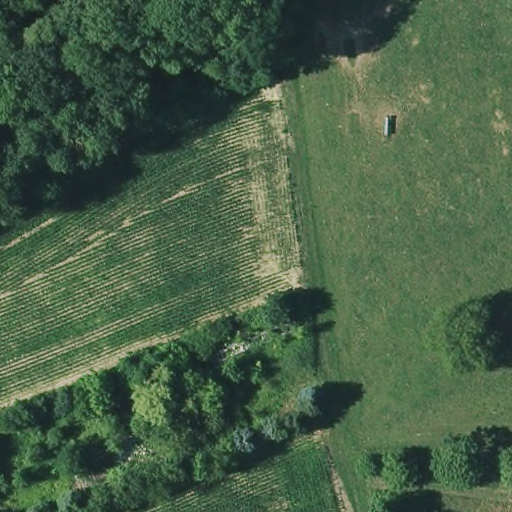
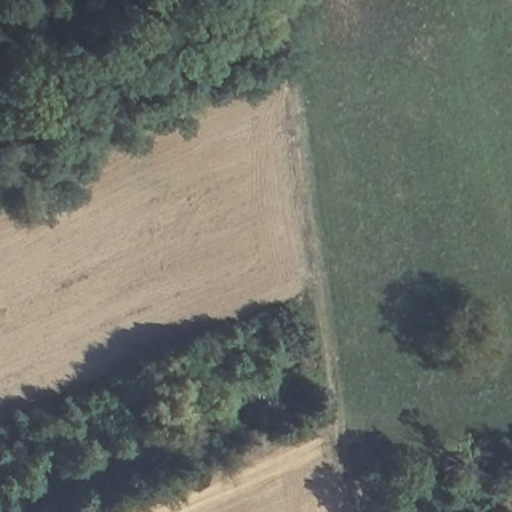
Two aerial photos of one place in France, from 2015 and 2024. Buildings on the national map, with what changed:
unchanged [(275,310),(289,341),(192,379),(180,350),(275,310)]
unchanged [(120,421),(107,383),(134,376),(146,412),(120,421)]
unchanged [(169,461),(86,497),(71,465),(157,428),(169,461)]

